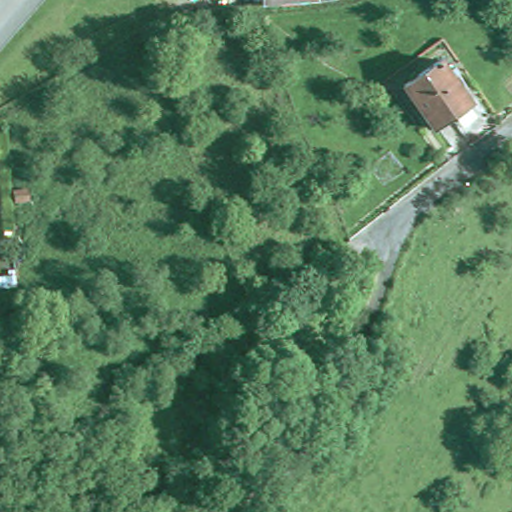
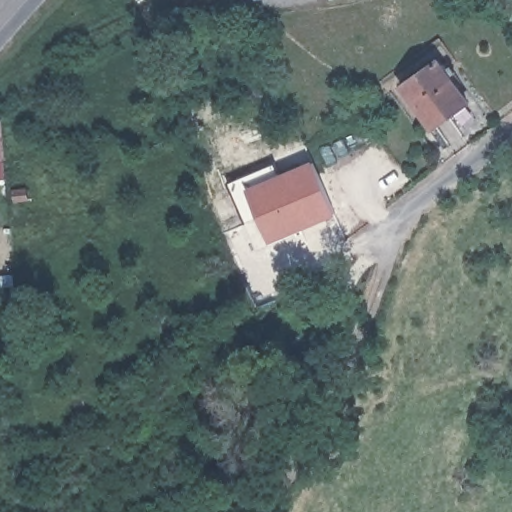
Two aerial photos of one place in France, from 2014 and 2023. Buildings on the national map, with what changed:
unchanged [(268,9),(267,0),(338,0),(306,5),(268,9)]
unchanged [(434,126),(402,83),(439,56),(447,69),(454,64),(466,80),(459,85),(469,101),(434,126)]
new [(257,214),(245,223),(228,183),(276,162),(282,172),(313,159),(336,215),(269,242),(257,214)]

